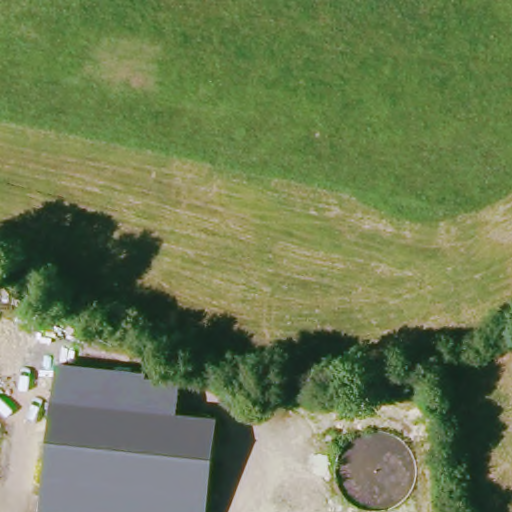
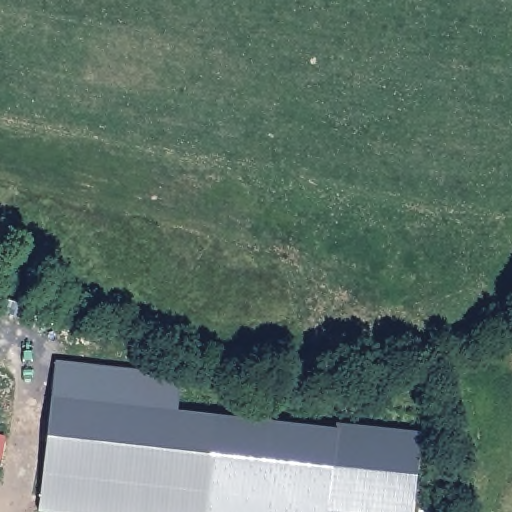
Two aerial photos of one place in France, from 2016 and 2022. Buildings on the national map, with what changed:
unchanged [(179,378),(176,413),(216,416),(205,512),(37,512),(55,363),(179,378)]
new [(418,512),(343,512),(329,510),(329,512),(205,512),(216,416),(336,427),(339,424),(424,432),(418,512)]

